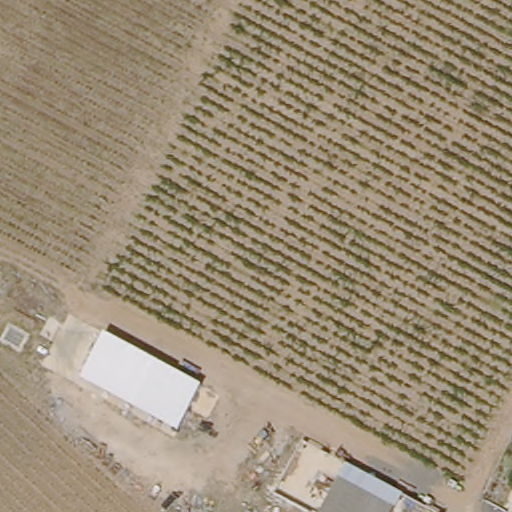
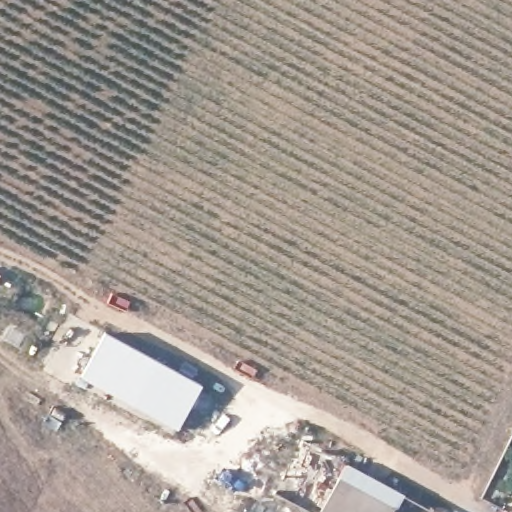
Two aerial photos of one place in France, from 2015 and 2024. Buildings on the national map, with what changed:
unchanged [(79,378),(102,335),(197,388),(176,427),(79,378)]
unchanged [(348,468),(396,489),(386,512),(321,512),(348,468)]

